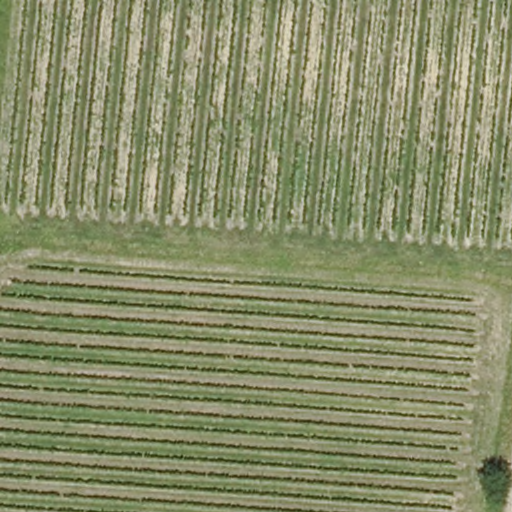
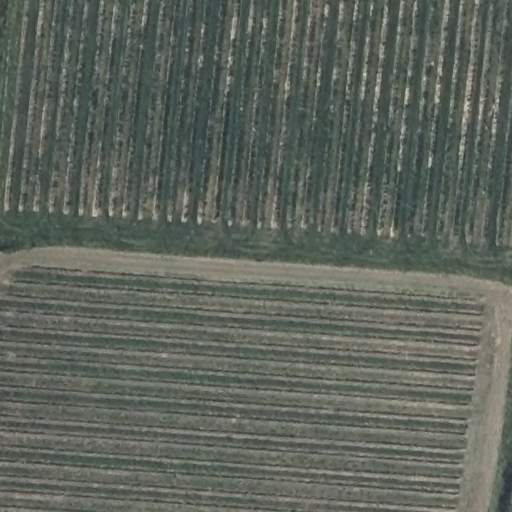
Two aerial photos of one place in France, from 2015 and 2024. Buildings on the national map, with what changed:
[]

